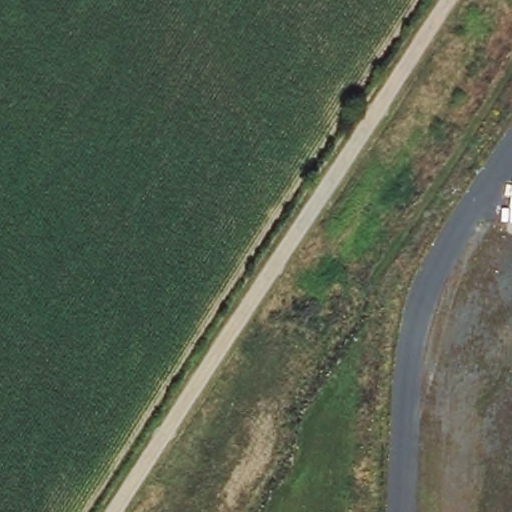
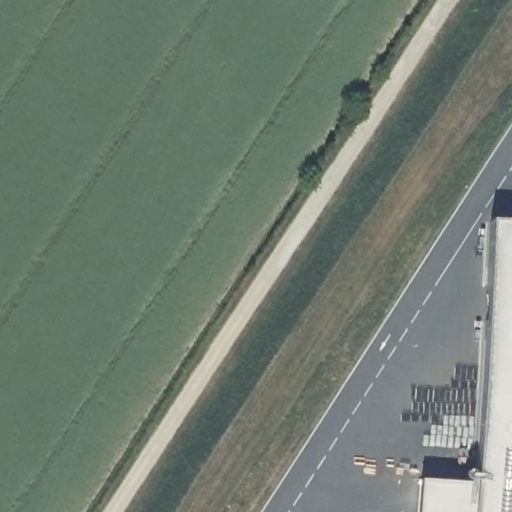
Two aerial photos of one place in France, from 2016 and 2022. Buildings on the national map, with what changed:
new [(420,482),(479,485),(490,222),(512,223),(512,512),(419,512),(420,482)]

